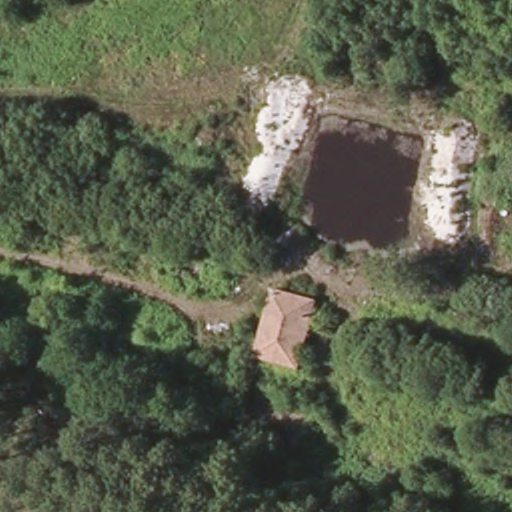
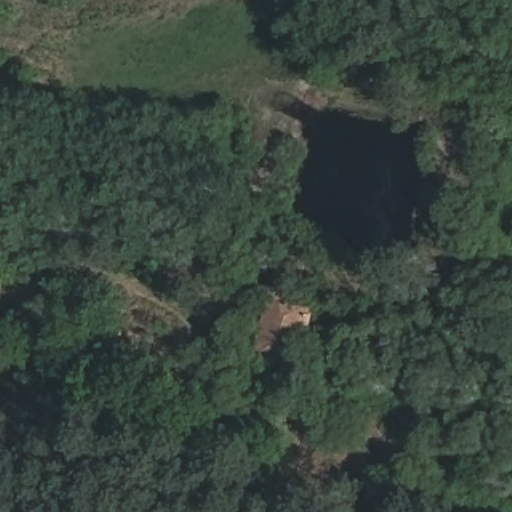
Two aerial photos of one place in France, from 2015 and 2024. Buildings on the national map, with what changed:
unchanged [(311,302),(292,368),(252,355),(271,289),(311,302)]

